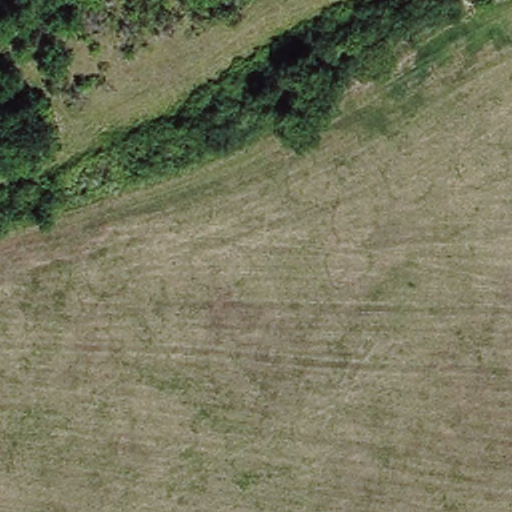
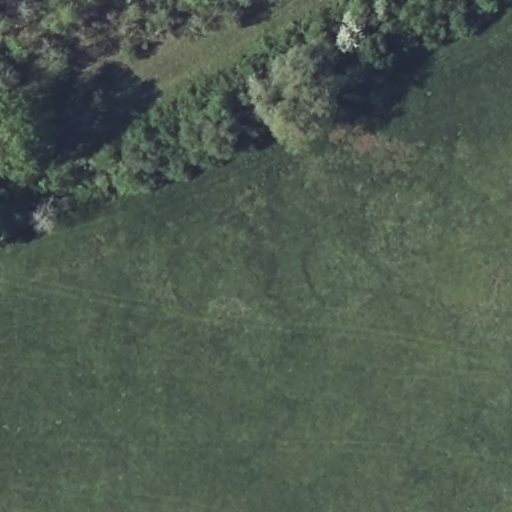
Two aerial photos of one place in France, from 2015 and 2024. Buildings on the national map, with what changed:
[]

